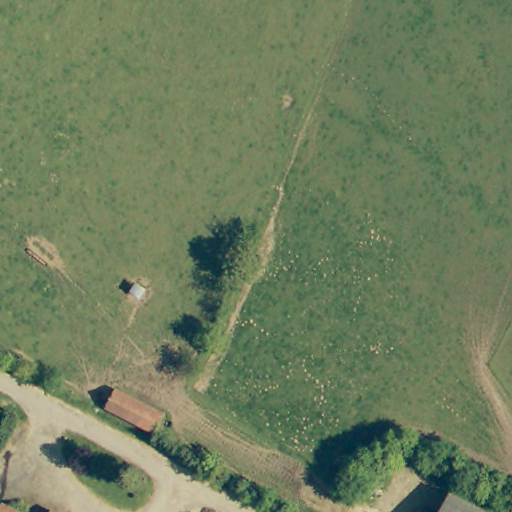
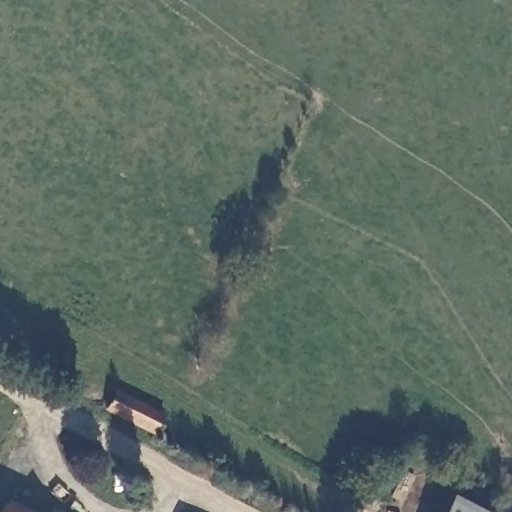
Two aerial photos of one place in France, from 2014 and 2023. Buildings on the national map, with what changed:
unchanged [(164,414),(156,430),(109,407),(117,391),(164,414)]
unchanged [(489,512),(438,512),(449,491),(489,512)]
unchanged [(28,512),(1,512),(6,501),(28,512)]
unchanged [(61,512),(52,512),(53,508),(61,512)]

